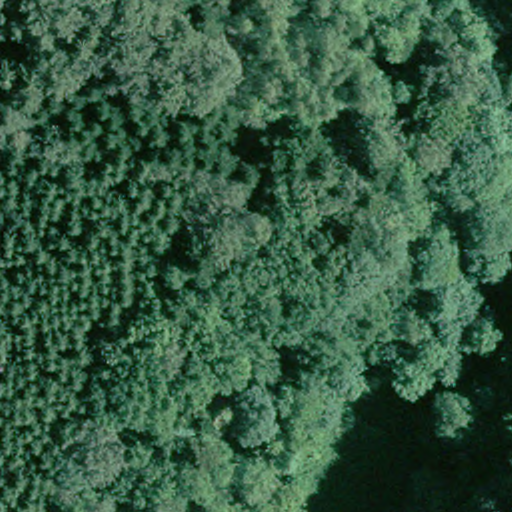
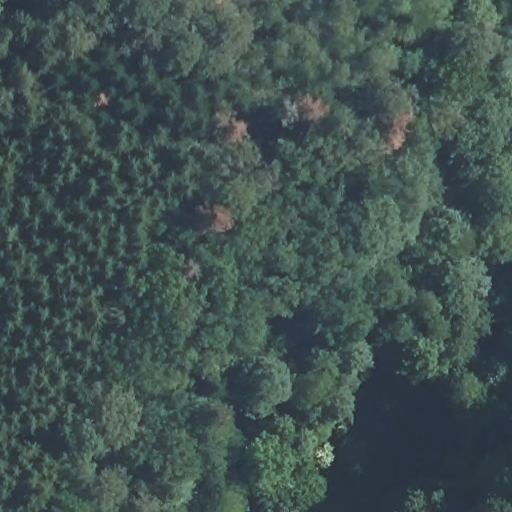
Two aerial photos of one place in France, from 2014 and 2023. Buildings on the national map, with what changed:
[]

